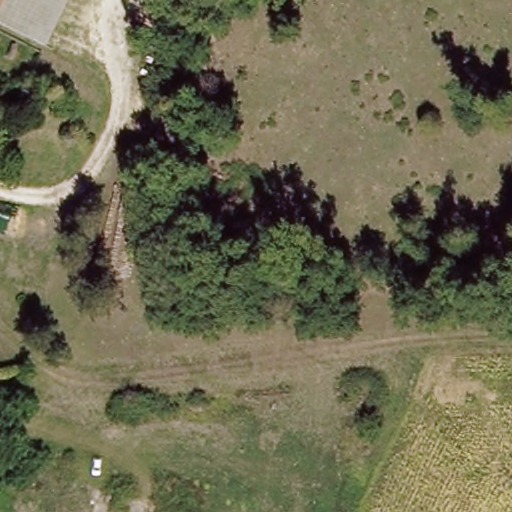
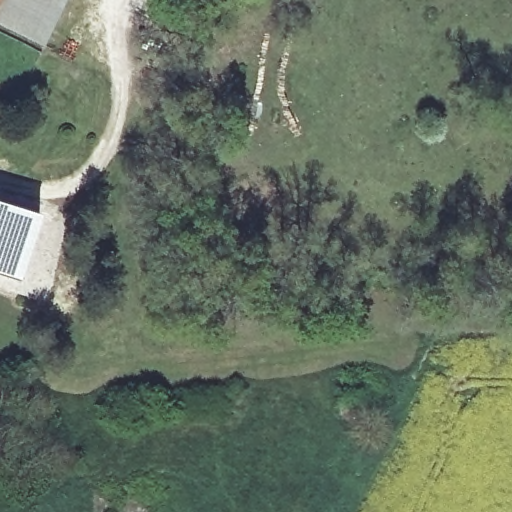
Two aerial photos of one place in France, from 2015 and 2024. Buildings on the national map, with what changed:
unchanged [(0,20),(0,0),(51,0),(35,35),(0,20)]
unchanged [(35,35),(51,0),(65,0),(47,40),(35,35)]
new [(20,279),(0,273),(0,205),(41,217),(20,279)]

